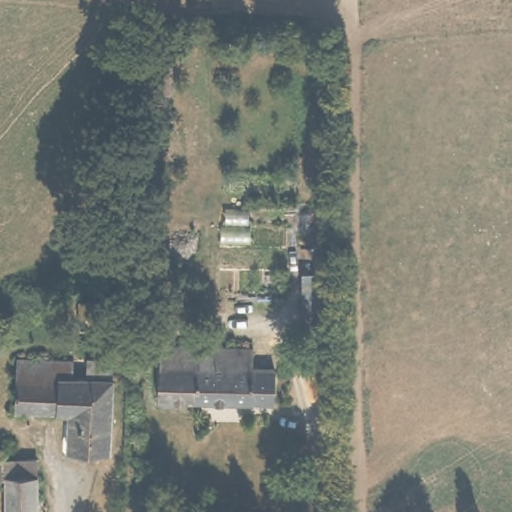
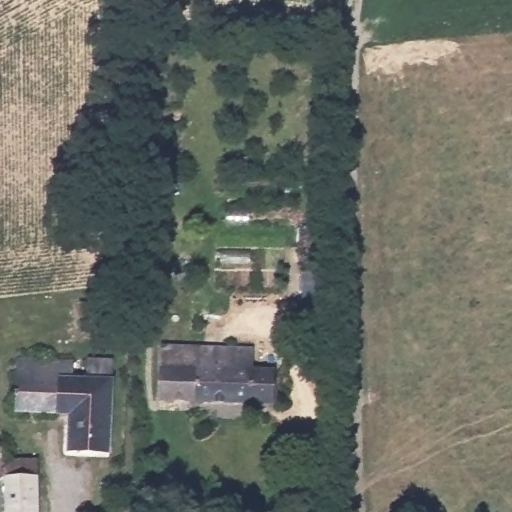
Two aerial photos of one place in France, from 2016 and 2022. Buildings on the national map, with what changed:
unchanged [(207,345),(209,398),(161,398),(160,345),(207,345)]
unchanged [(263,347),(263,367),(282,367),(283,399),(209,398),(207,345),(263,347)]
unchanged [(75,354),(74,368),(75,374),(64,372),(65,408),(21,408),(22,353),(65,354),(75,354)]
unchanged [(111,410),(110,447),(73,446),(74,408),(65,408),(64,372),(75,374),(74,368),(87,368),(87,353),(112,354),(111,410)]
unchanged [(5,481),(0,481),(0,448),(4,448),(5,462),(37,462),(37,481),(37,512),(4,512),(5,481)]

